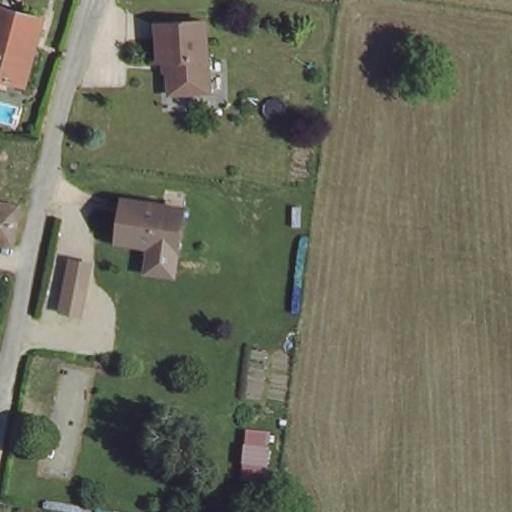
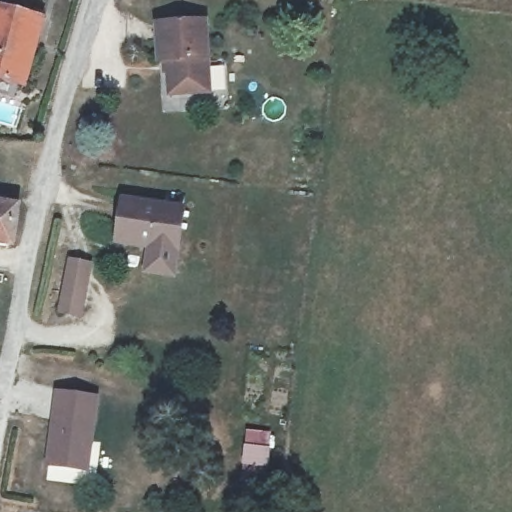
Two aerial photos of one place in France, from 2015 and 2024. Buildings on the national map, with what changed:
unchanged [(23,85),(0,79),(0,9),(40,20),(23,85)]
unchanged [(208,20),(212,90),(175,92),(173,59),(163,56),(162,22),(208,20)]
unchanged [(187,210),(182,251),(118,245),(123,200),(187,210)]
unchanged [(15,244),(0,241),(0,202),(22,206),(15,244)]
new [(70,267),(90,270),(83,320),(63,317),(70,267)]
new [(52,387),(100,393),(89,473),(43,467),(52,387)]

